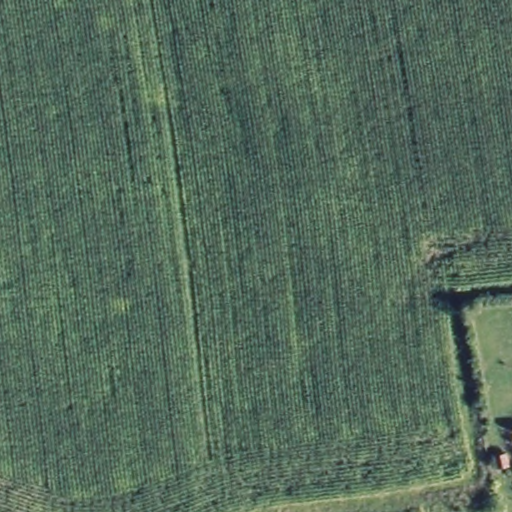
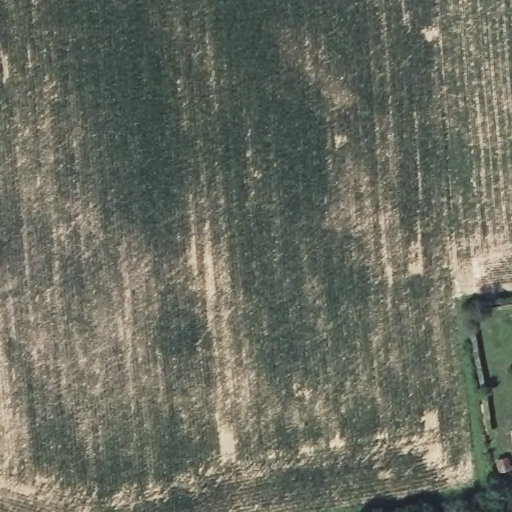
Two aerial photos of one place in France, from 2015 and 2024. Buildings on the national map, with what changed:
unchanged [(502,473),(512,473),(512,484),(503,484),(502,473)]

